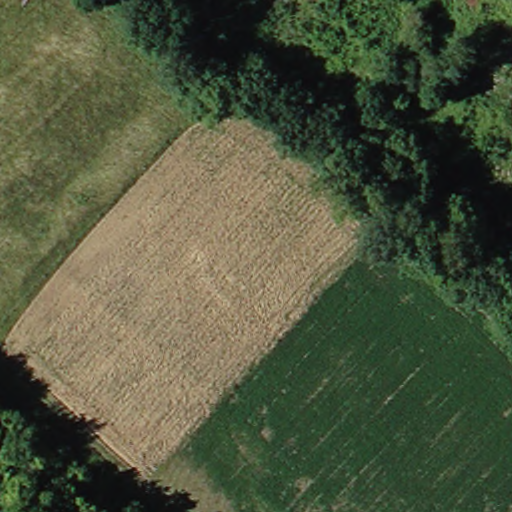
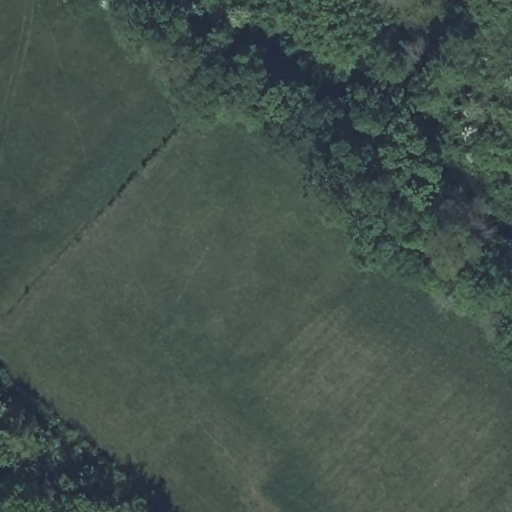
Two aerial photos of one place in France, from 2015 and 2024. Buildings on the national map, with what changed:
unchanged [(475,0),(478,0),(478,1),(475,0)]

